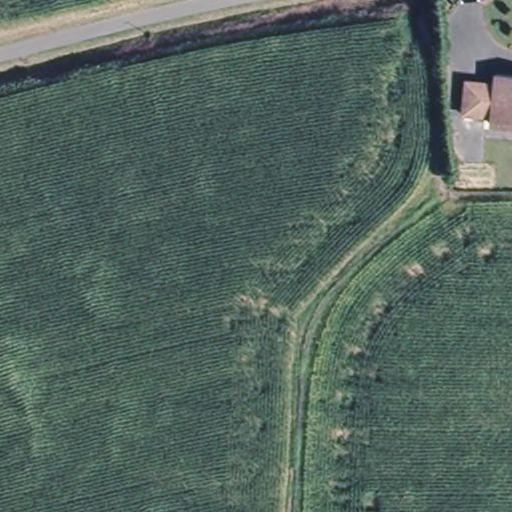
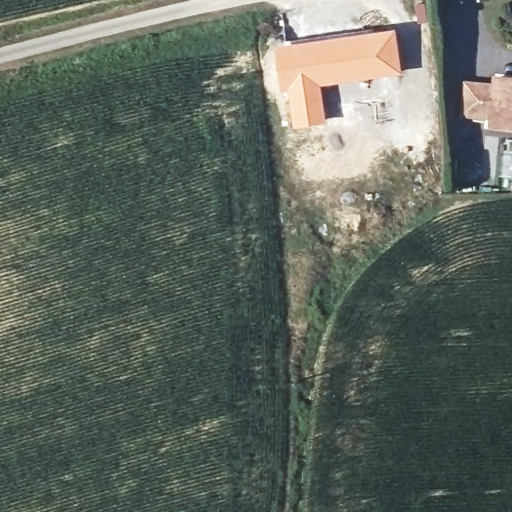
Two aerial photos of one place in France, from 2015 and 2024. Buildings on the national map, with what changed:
new [(396,28),(403,74),(322,85),(326,123),(292,128),(287,90),(280,91),(274,46),(396,28)]
unchanged [(492,112),(464,107),(470,76),(498,81),(499,73),(512,76),(512,124),(491,120),(492,112)]

